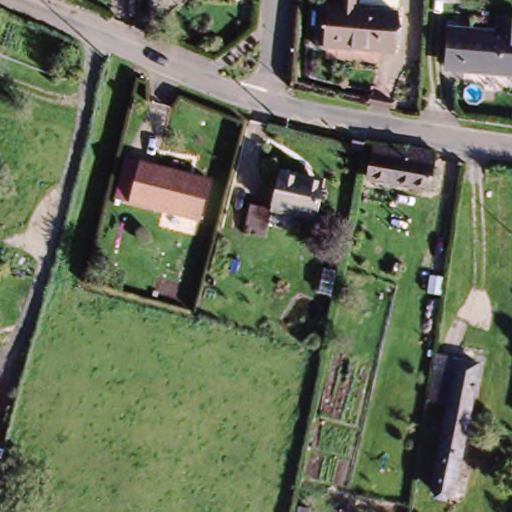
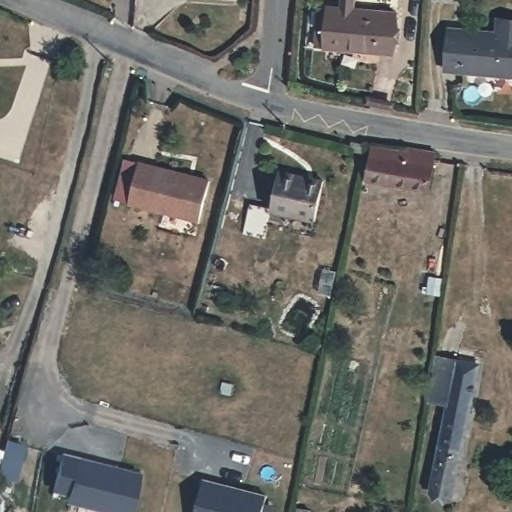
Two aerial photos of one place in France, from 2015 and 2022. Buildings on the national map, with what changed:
unchanged [(335,10),(400,17),(395,57),(330,49),(335,10)]
unchanged [(451,75),(455,35),(498,39),(500,21),(512,23),(512,81),(451,75)]
unchanged [(365,185),(369,161),(371,142),(399,146),(430,151),(425,192),(365,185)]
unchanged [(194,221),(124,202),(111,199),(122,160),(135,163),(205,182),(194,221)]
unchanged [(270,215),(281,178),(307,184),(324,187),(322,196),(312,227),(270,215)]
unchanged [(429,400),(435,358),(459,361),(453,403),(429,400)]
unchanged [(453,403),(459,361),(477,363),(462,472),(459,492),(442,490),(445,468),(453,403)]
new [(7,437),(27,444),(16,481),(0,476),(0,447),(4,448),(7,437)]
new [(141,474),(131,512),(110,512),(67,501),(77,458),(141,474)]
new [(267,496),(262,512),(195,512),(203,480),(267,496)]

